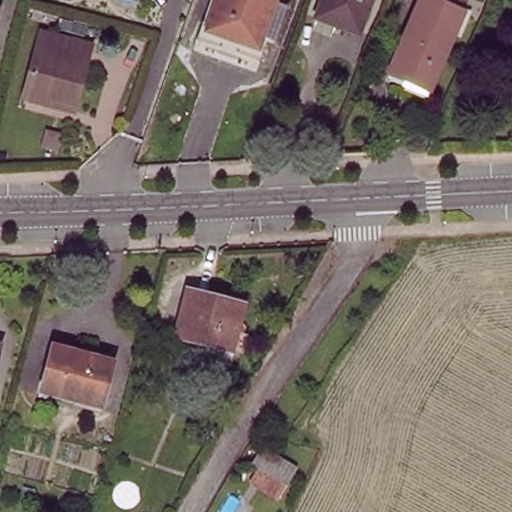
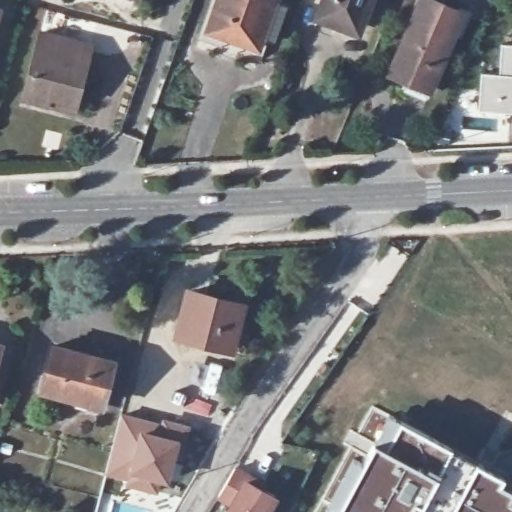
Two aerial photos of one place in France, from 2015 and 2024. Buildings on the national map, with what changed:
unchanged [(206,35),(200,32),(210,0),(282,0),(270,33),(263,30),(256,51),(250,50),(241,46),(238,52),(203,41),(206,35)]
unchanged [(338,20),(336,26),(316,20),(324,0),(361,0),(351,25),(338,20)]
unchanged [(370,1),(366,0),(370,0),(370,1)]
unchanged [(463,10),(429,87),(389,70),(420,0),(440,0),(463,10)]
unchanged [(48,104),(23,97),(39,31),(90,45),(75,103),(73,110),(48,104)]
new [(499,41),(512,42),(512,74),(497,72),(499,41)]
new [(479,70),(497,72),(512,74),(512,115),(477,111),(479,70)]
unchanged [(178,333),(188,291),(243,305),(233,346),(178,333)]
unchanged [(0,347),(0,343),(1,343),(0,347)]
unchanged [(53,344),(111,360),(100,403),(41,387),(53,344)]
new [(163,423),(165,418),(193,426),(185,460),(179,458),(173,485),(166,483),(163,495),(126,487),(128,481),(106,476),(108,476),(123,412),(163,423)]
new [(512,478),(512,512),(342,512),(395,415),(512,478)]
new [(223,512),(228,505),(217,500),(236,465),(267,480),(263,489),(276,496),(267,512),(223,512)]

